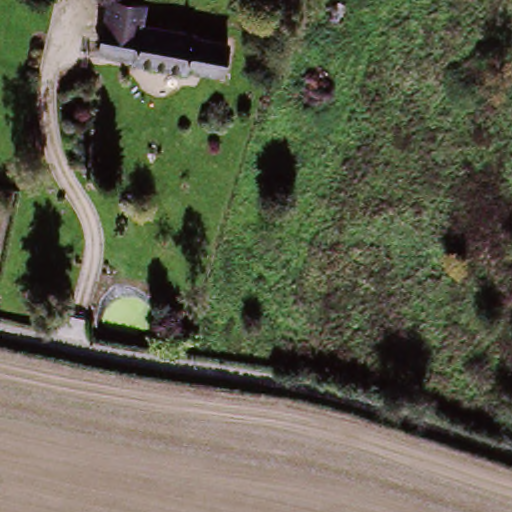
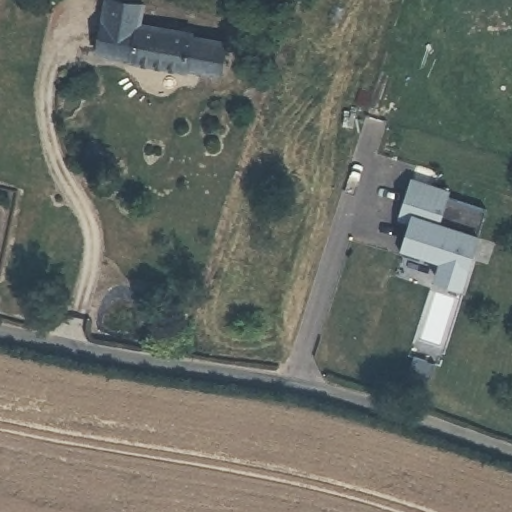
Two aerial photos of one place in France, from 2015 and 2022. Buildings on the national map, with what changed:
unchanged [(158,64),(134,56),(99,50),(104,21),(107,1),(143,6),(141,26),(197,34),(196,39),(226,45),(220,74),(197,69),(158,64)]
new [(452,187),(450,195),(487,210),(478,229),(481,231),(463,285),(435,278),(440,261),(400,248),(409,222),(397,219),(411,176),(452,187)]

